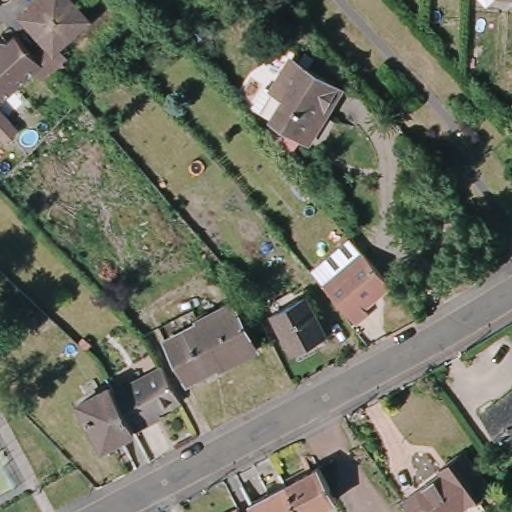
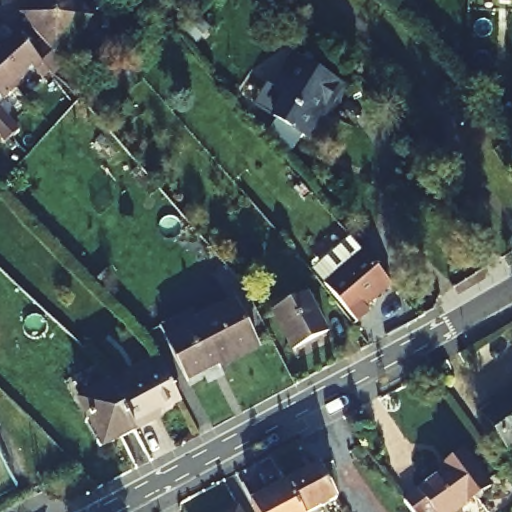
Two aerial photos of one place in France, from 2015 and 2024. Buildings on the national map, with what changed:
unchanged [(74,2),(91,22),(59,50),(67,60),(60,65),(63,69),(52,78),(48,74),(42,80),(34,72),(16,89),(0,104),(0,42),(8,42),(14,36),(30,55),(42,44),(36,37),(19,18),(39,0),(73,0),(74,2)]
unchanged [(512,1),(499,1),(498,0),(512,0),(512,1)]
unchanged [(273,84),(277,87),(302,59),(347,99),(306,145),(257,102),(273,84)]
unchanged [(18,130),(3,143),(0,140),(0,108),(18,130)]
unchanged [(369,306),(374,310),(361,321),(329,283),(369,250),(378,261),(396,283),(369,306)]
unchanged [(326,337),(294,353),(274,313),(306,297),(326,337)]
unchanged [(259,348),(221,368),(219,365),(188,381),(166,340),(234,302),(259,348)]
unchanged [(139,419),(141,425),(128,432),(108,392),(153,370),(171,403),(139,419)]
unchanged [(99,447),(84,421),(79,424),(69,407),(103,388),(128,432),(99,447)]
unchanged [(483,417),(512,394),(512,445),(507,448),(483,417)]
unchanged [(447,459),(453,454),(469,443),(494,478),(449,512),(422,512),(408,493),(449,463),(447,459)]
unchanged [(319,467),(336,501),(315,512),(300,512),(286,483),(319,467)]
unchanged [(254,512),(249,502),(286,483),(300,512),(254,512)]
unchanged [(236,512),(222,512),(233,506),(236,512)]

